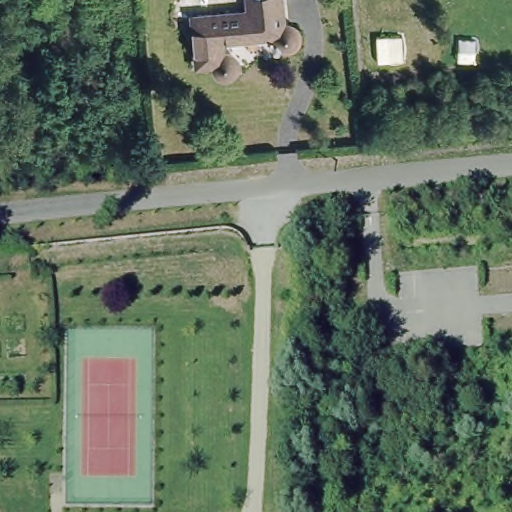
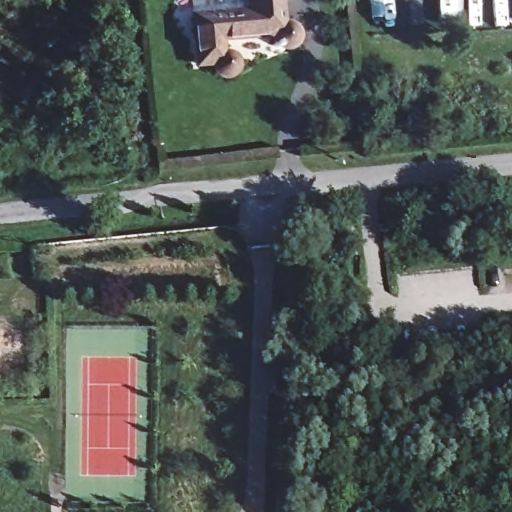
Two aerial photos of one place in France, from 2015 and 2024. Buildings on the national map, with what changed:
unchanged [(241,0),(274,0),(276,24),(281,26),(285,28),(288,32),(288,36),(286,41),(283,46),(279,47),(273,47),(268,44),(264,38),(215,42),(216,55),(221,57),(226,60),(226,64),(226,68),(224,72),(221,74),(218,75),(213,75),(208,73),(207,70),(205,65),(188,66),(184,15),(243,12),(241,0)]

